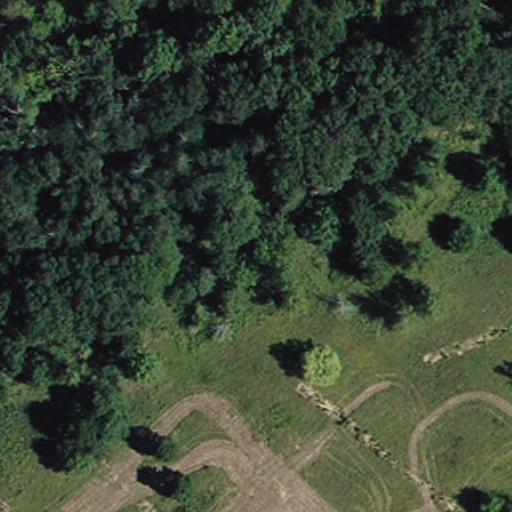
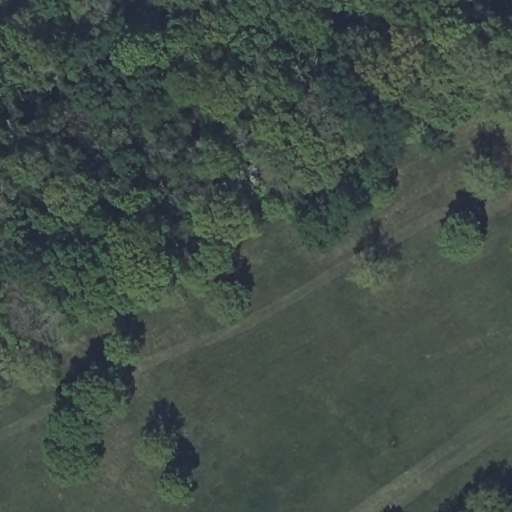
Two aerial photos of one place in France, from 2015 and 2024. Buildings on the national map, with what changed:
[]

